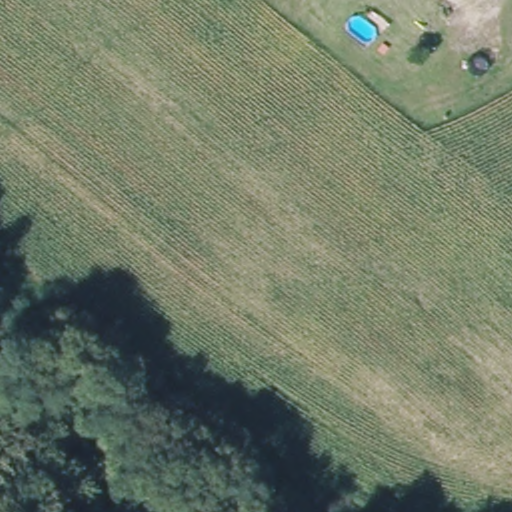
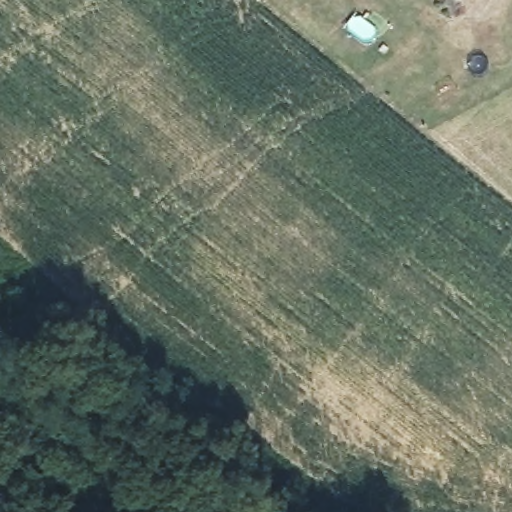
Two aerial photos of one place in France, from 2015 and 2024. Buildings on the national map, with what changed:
[]

